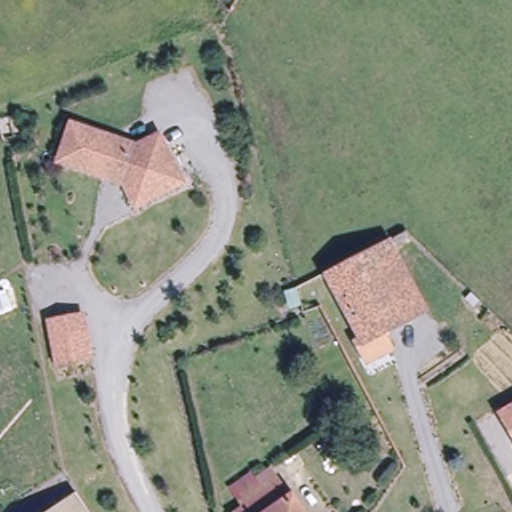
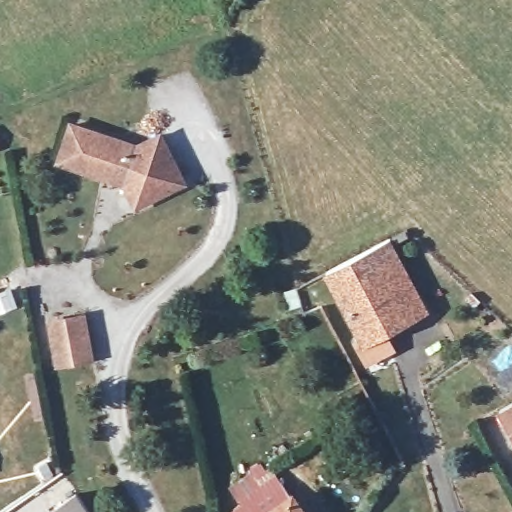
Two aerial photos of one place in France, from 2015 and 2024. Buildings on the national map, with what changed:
unchanged [(64,160),(76,124),(126,141),(131,150),(140,145),(147,160),(172,149),(188,184),(139,205),(122,170),(115,167),(111,176),(64,160)]
unchanged [(367,360),(355,335),(359,333),(325,268),(344,258),(391,235),(428,306),(386,328),(395,345),(367,360)]
unchanged [(84,311),(88,310),(93,334),(96,353),(64,359),(56,316),(84,311)]
unchanged [(512,402),(512,436),(498,410),(512,402)]
unchanged [(245,505),(242,500),(275,476),(280,482),(283,481),(291,492),(263,512),(235,512),(245,505)]
unchanged [(304,512),(263,512),(291,492),(304,512)]
unchanged [(76,494),(88,512),(50,512),(76,494)]

